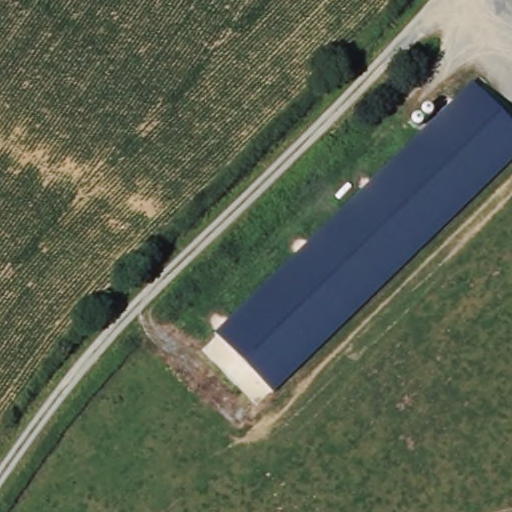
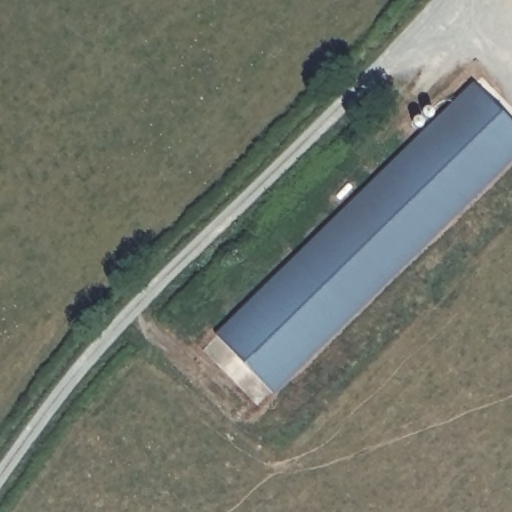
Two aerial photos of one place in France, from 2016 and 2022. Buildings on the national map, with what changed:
unchanged [(475,85),(512,124),(512,162),(273,395),(215,335),(475,85)]

